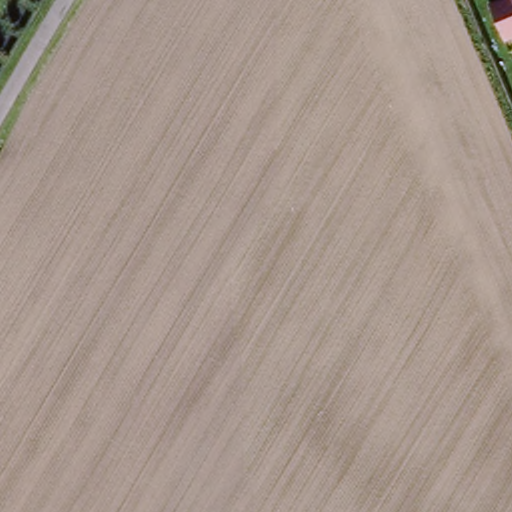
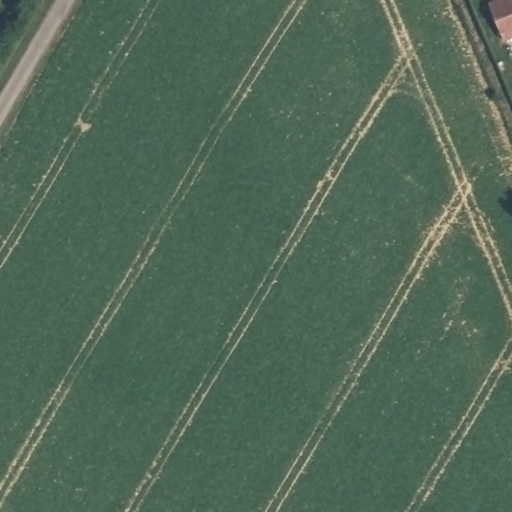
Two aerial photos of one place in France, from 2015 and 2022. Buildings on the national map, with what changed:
unchanged [(499,41),(486,9),(508,0),(512,0),(512,37),(499,41)]

